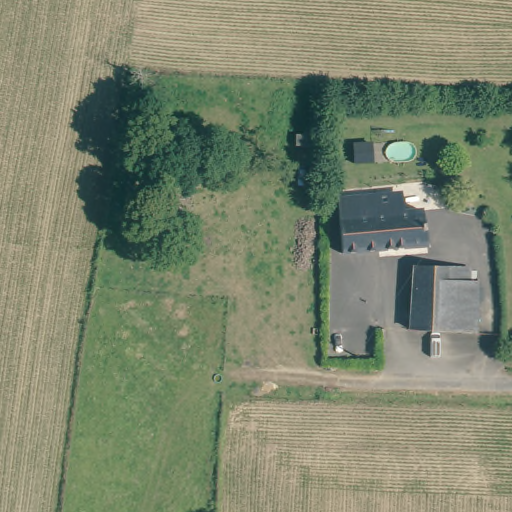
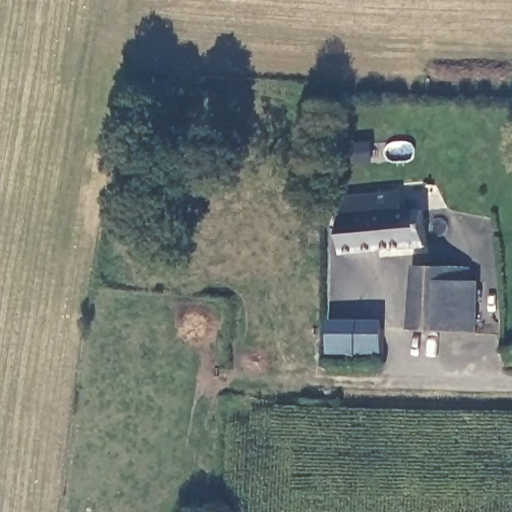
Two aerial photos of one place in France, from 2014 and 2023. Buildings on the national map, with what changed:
unchanged [(372,215),(376,251),(341,255),(337,196),(371,192),(372,215)]
unchanged [(376,251),(372,215),(371,192),(399,192),(403,209),(422,209),(427,246),(376,251)]
unchanged [(408,265),(463,266),(462,282),(477,282),(476,328),(407,326),(408,265)]
new [(382,356),(327,355),(328,321),(382,321),(382,356)]

